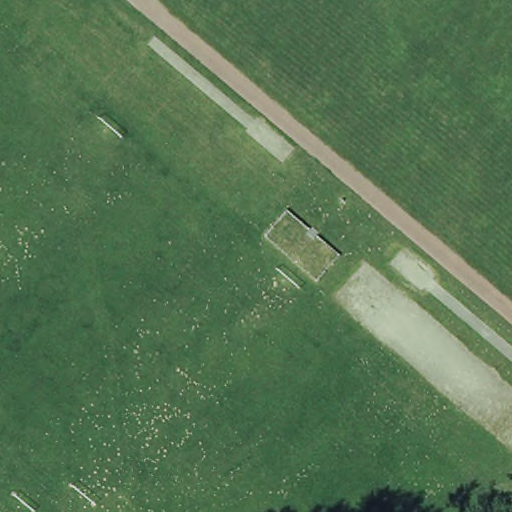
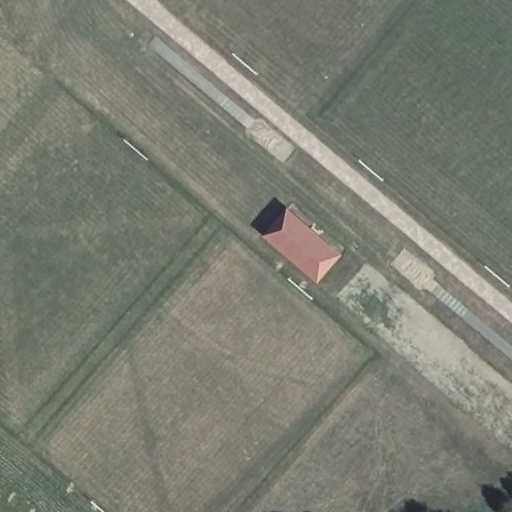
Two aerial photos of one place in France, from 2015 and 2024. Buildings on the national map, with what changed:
new [(342,258),(317,285),(261,234),(283,207),(342,258)]

